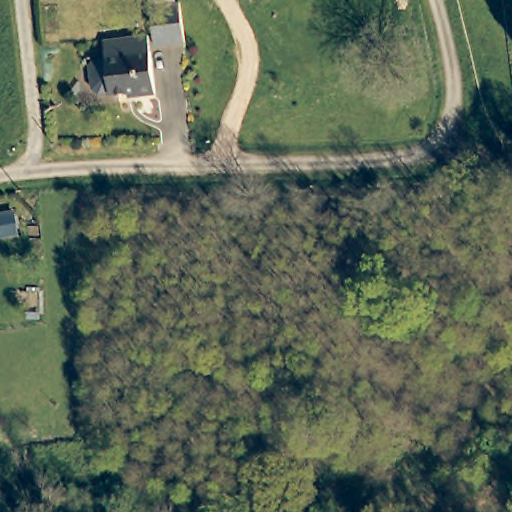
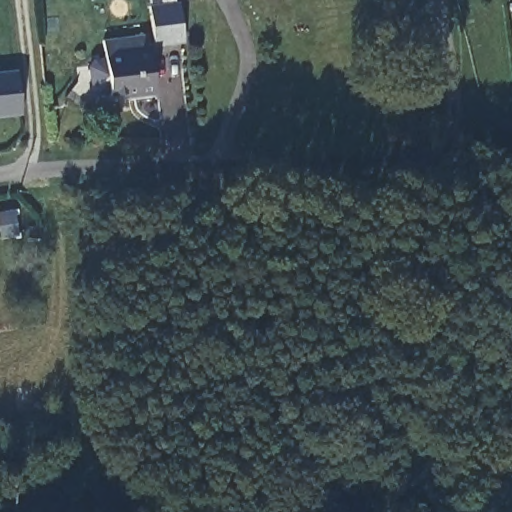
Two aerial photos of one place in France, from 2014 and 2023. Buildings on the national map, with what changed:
unchanged [(154,46),(150,5),(179,1),(184,43),(154,46)]
unchanged [(95,86),(91,64),(96,59),(108,59),(105,39),(150,34),(156,93),(135,95),(134,90),(111,92),(111,88),(100,89),(95,86)]
new [(21,114),(0,116),(0,72),(17,70),(21,114)]
unchanged [(0,233),(0,214),(9,212),(12,231),(0,233)]

